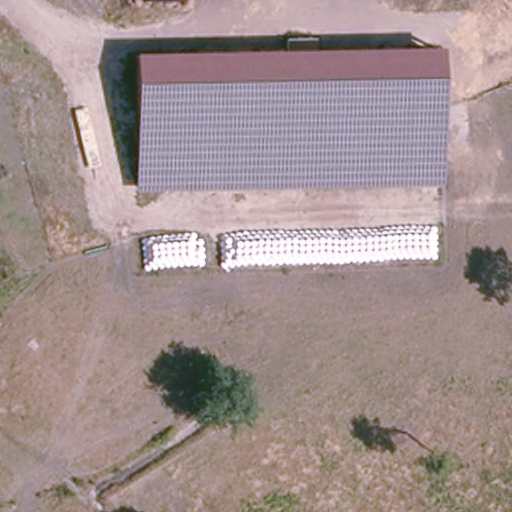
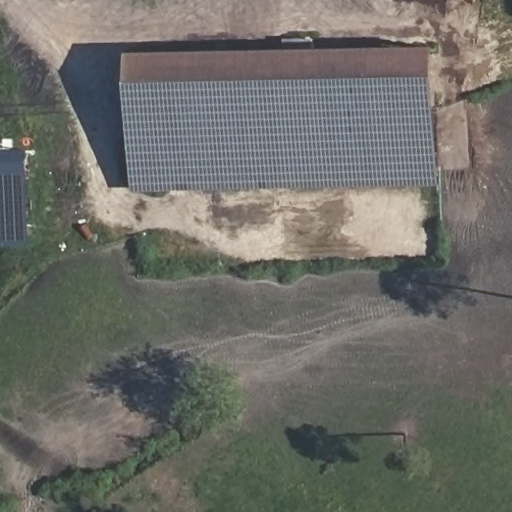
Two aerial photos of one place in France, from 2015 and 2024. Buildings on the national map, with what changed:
unchanged [(441,185),(134,190),(134,54),(439,47),(441,185)]
new [(34,246),(0,245),(0,149),(35,150),(35,163),(34,246)]

